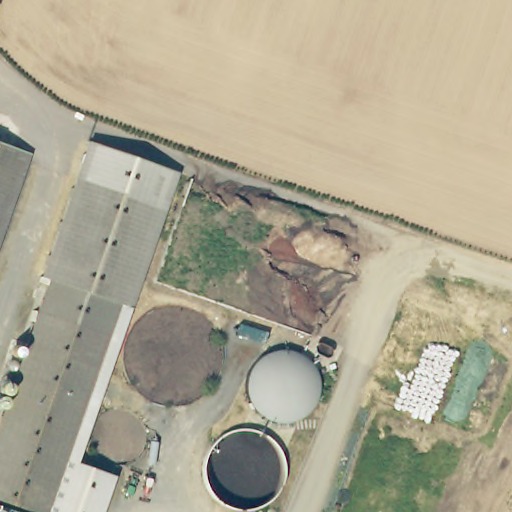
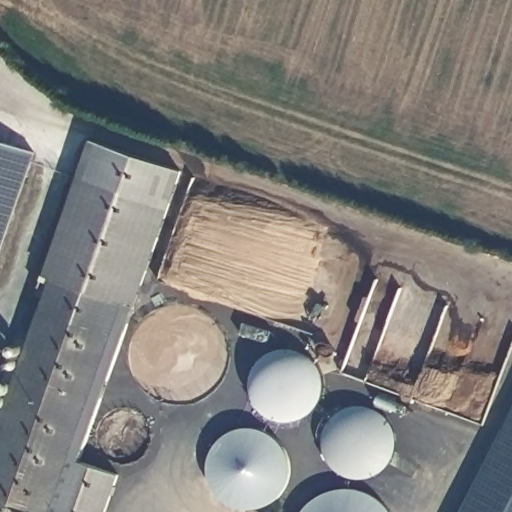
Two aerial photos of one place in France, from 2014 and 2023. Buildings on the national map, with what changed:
unchanged [(27,148),(0,227),(0,139),(27,148)]
unchanged [(158,203),(77,175),(88,141),(176,172),(165,205),(158,203)]
unchanged [(42,277),(77,175),(165,205),(130,307),(119,304),(108,339),(47,512),(39,512),(0,497),(0,422),(48,279),(42,277)]
unchanged [(108,339),(119,304),(130,307),(78,462),(115,476),(103,512),(47,512),(58,480),(108,339)]
new [(512,512),(460,512),(512,408),(512,512)]

